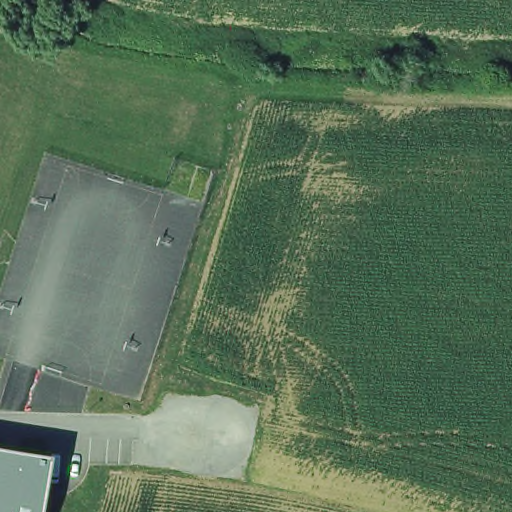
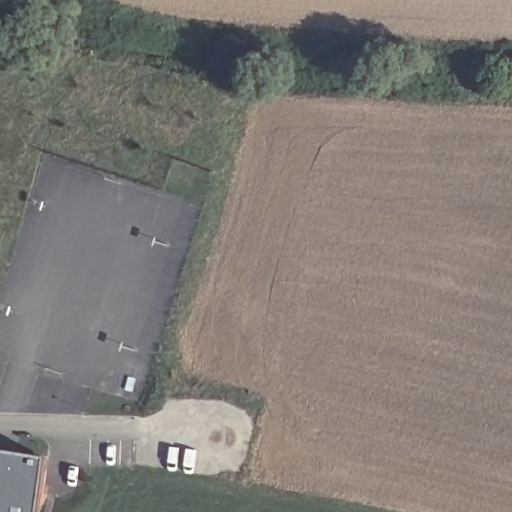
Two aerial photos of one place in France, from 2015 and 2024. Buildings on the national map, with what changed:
unchanged [(43,512),(0,512),(0,444),(53,452),(43,512)]

